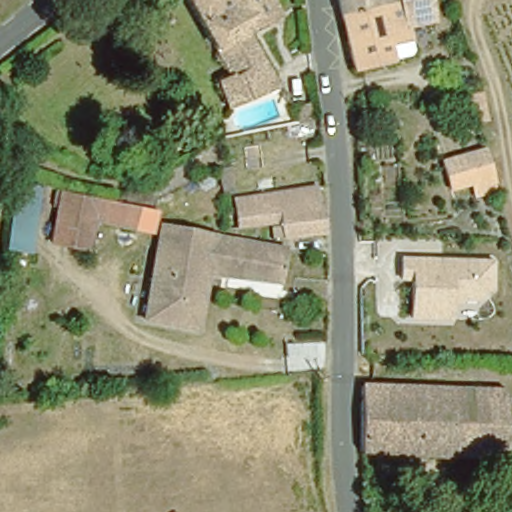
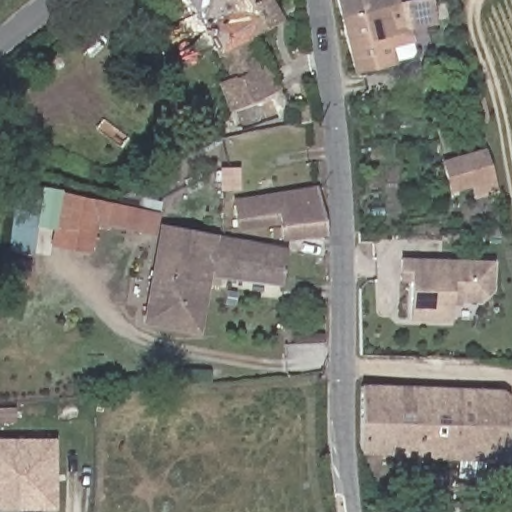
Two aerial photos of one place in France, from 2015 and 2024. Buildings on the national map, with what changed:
unchanged [(216,81),(228,76),(186,0),(264,0),(274,17),(246,35),(276,88),(227,109),(216,81)]
unchanged [(381,5),(379,5),(342,13),(338,0),(399,0),(400,0),(381,5)]
unchanged [(434,19),(408,25),(411,39),(410,40),(412,50),(411,55),(355,69),(342,13),(379,5),(381,5),(400,0),(402,0),(429,0),(434,19)]
unchanged [(453,99),(479,93),(486,118),(460,125),(453,99)]
unchanged [(499,190),(472,198),(468,184),(449,189),(442,160),(487,148),(499,190)]
unchanged [(217,150),(220,150),(225,164),(230,164),(233,187),(223,189),(217,150)]
unchanged [(30,183),(28,201),(35,203),(28,245),(21,245),(21,251),(9,249),(20,181),(30,183)]
unchanged [(324,228),(282,234),(279,217),(260,219),(239,223),(234,195),(256,191),(318,182),(324,228)]
unchanged [(61,194),(138,209),(134,229),(95,220),(89,250),(51,243),(61,194)]
unchanged [(281,284),(206,272),(197,328),(144,320),(160,228),(263,246),(285,250),(286,250),(281,284)]
unchanged [(448,304),(447,320),(409,318),(410,279),(399,279),(400,259),(491,263),(489,289),(476,301),(457,300),(457,305),(448,304)]
unchanged [(207,310),(214,311),(212,331),(205,330),(207,310)]
unchanged [(362,386),(501,389),(506,393),(503,459),(362,451),(362,386)]
new [(55,508),(0,509),(0,437),(55,437),(55,508)]
unchanged [(512,504),(512,512),(504,512),(503,506),(512,504)]

